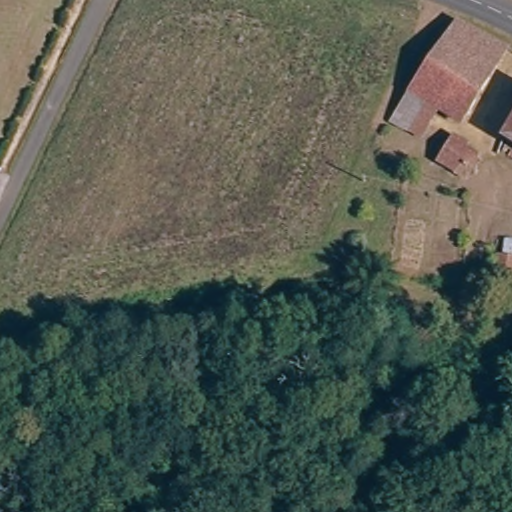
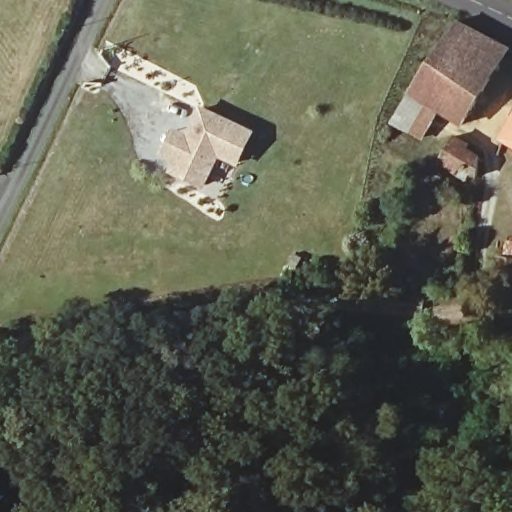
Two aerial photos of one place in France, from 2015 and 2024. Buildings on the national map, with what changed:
unchanged [(460,19),(511,54),(462,127),(438,112),(423,136),(395,118),(411,93),(460,19)]
new [(238,167),(220,159),(206,189),(170,173),(175,161),(161,154),(174,127),(187,134),(200,104),(257,131),(238,167)]
unchanged [(512,127),(512,142),(505,137),(512,127)]
unchanged [(447,146),(451,140),(477,157),(477,176),(466,169),(461,177),(437,161),(447,146)]

